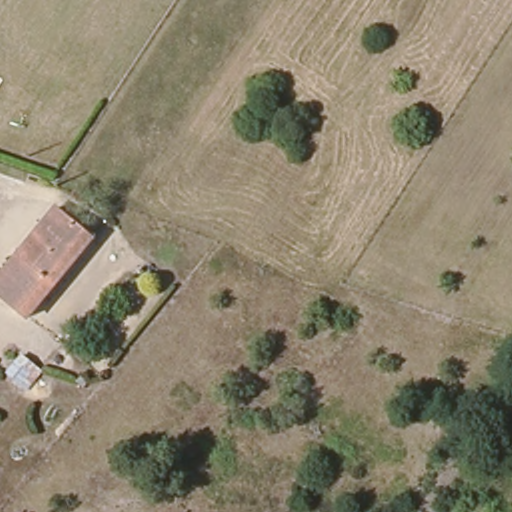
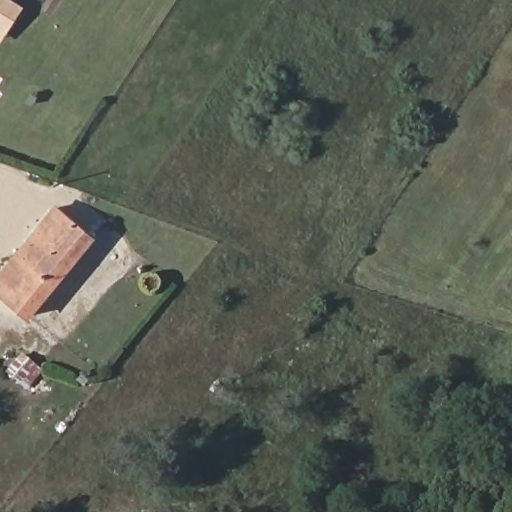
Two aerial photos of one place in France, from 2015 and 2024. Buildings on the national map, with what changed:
new [(0,42),(0,0),(15,0),(26,7),(2,43),(0,42)]
unchanged [(0,291),(0,268),(56,202),(96,233),(27,314),(0,291)]

